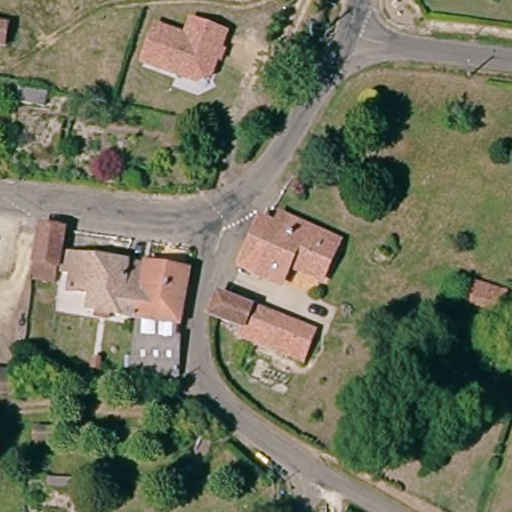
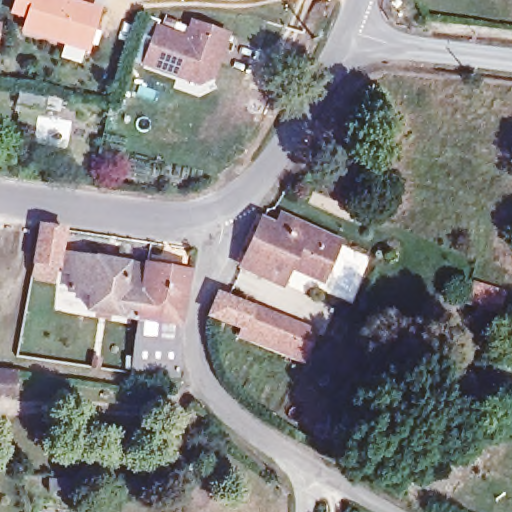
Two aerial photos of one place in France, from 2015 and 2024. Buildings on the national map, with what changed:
new [(25,18),(10,14),(14,0),(78,0),(102,7),(89,51),(21,31),(25,18)]
unchanged [(6,21),(9,50),(0,48),(0,19),(6,21)]
unchanged [(232,34),(217,77),(200,87),(141,67),(155,25),(185,35),(190,19),(232,34)]
unchanged [(52,97),(49,111),(21,106),(23,92),(52,97)]
unchanged [(63,227),(57,277),(30,274),(37,222),(63,227)]
unchanged [(280,272),(277,282),(241,270),(257,228),(271,234),(275,222),(333,246),(329,257),(324,268),(318,286),(280,272)]
unchanged [(92,310),(95,287),(73,283),(76,265),(63,263),(65,251),(77,252),(146,262),(138,316),(92,310)]
unchanged [(182,322),(138,316),(146,262),(189,269),(182,322)]
unchanged [(298,361),(244,334),(249,323),(218,308),(227,289),(312,330),(298,361)]
unchanged [(177,372),(131,366),(138,316),(182,322),(182,325),(177,372)]
unchanged [(29,372),(28,385),(0,381),(0,370),(29,372)]
unchanged [(78,427),(76,443),(46,440),(48,425),(78,427)]
unchanged [(94,479),(94,491),(62,490),(62,478),(94,479)]

